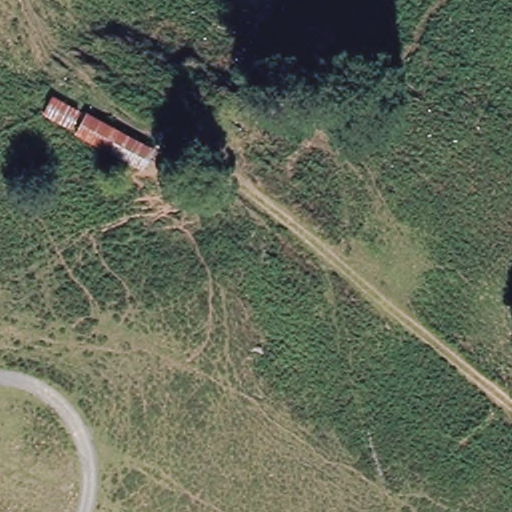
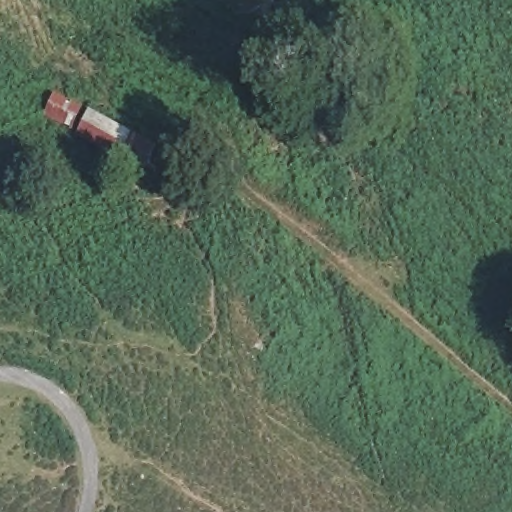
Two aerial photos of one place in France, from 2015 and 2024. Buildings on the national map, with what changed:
unchanged [(163,150),(151,176),(43,115),(59,93),(163,150)]

